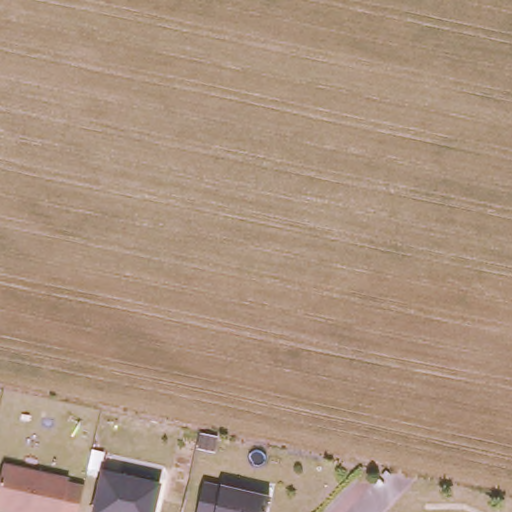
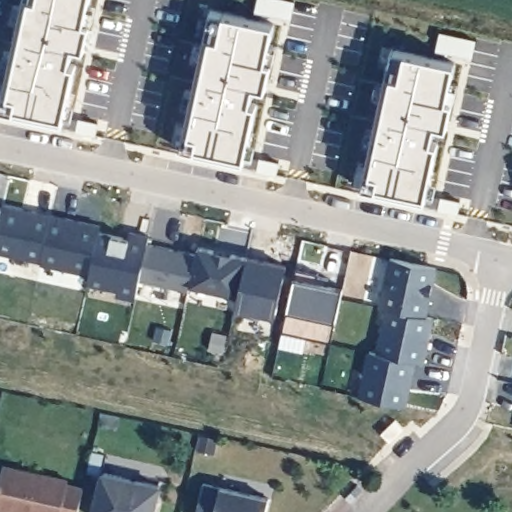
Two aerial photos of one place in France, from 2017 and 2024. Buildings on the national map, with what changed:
new [(90,23),(84,49),(72,46),(70,58),(12,46),(22,0),(89,0),(84,21),(90,23)]
new [(289,18),(255,10),(257,0),(288,0),(293,1),(289,18)]
new [(209,10),(273,23),(265,60),(271,61),(265,87),(254,85),(251,97),(193,85),(209,10)]
new [(474,40),(470,56),(436,50),(440,32),(474,40)]
new [(70,58),(69,62),(75,64),(62,123),(0,110),(0,103),(12,46),(70,58)]
new [(390,49),(455,62),(447,99),(452,100),(447,126),(435,124),(432,135),(375,124),(390,49)]
new [(193,85),(251,97),(250,102),(256,103),(243,162),(180,149),(193,85)]
new [(97,122),(94,135),(77,131),(79,119),(97,122)]
new [(432,135),(432,140),(437,141),(425,200),(361,187),(375,124),(432,135)]
new [(260,157),(278,161),(275,174),(257,170),(260,157)]
new [(441,196),(460,200),(457,213),(438,209),(441,196)]
new [(0,251),(0,214),(2,205),(51,215),(41,260),(0,251)]
new [(0,211),(0,206),(1,206),(0,211)]
new [(90,273),(40,262),(51,215),(100,225),(90,273)]
new [(128,237),(130,231),(149,235),(135,297),(117,293),(118,286),(88,280),(98,231),(128,237)]
new [(196,254),(188,290),(140,279),(147,243),(196,254)]
new [(275,315),(238,307),(241,292),(190,282),(195,256),(198,245),(248,255),(287,262),(275,315)]
new [(435,266),(425,315),(380,305),(390,256),(435,266)]
new [(336,318),(332,338),(282,328),(288,307),(295,275),(297,266),(330,273),(328,282),(343,286),(336,318)]
new [(432,316),(422,361),(377,351),(387,306),(432,316)]
new [(405,404),(360,395),(369,350),(415,360),(405,404)]
unchanged [(69,483),(82,485),(77,512),(2,512),(0,512),(0,477),(3,464),(70,478),(69,483)]
unchanged [(160,483),(155,512),(91,512),(100,470),(160,483)]
unchanged [(270,497),(266,512),(214,512),(220,486),(270,497)]

